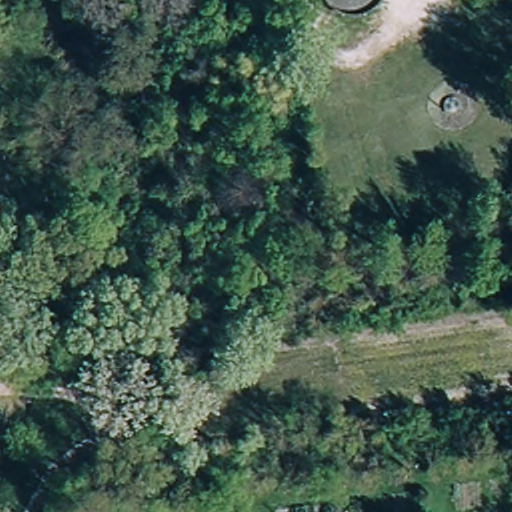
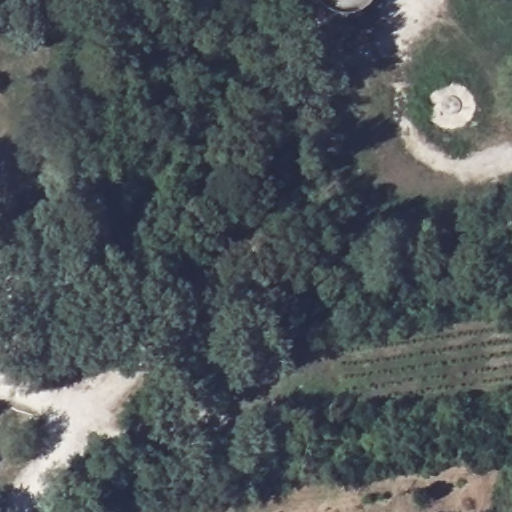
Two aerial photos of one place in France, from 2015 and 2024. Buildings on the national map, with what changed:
unchanged [(96,0),(115,0),(115,14),(96,14),(96,0)]
unchanged [(452,96),(454,97),(455,97),(456,97),(457,98),(458,99),(459,100),(460,102),(461,103),(461,104),(461,105),(461,106),(461,107),(461,109),(461,110),(460,111),(459,112),(459,113),(458,114),(457,114),(456,115),(455,115),(453,116),(451,116),(450,116),(449,115),(448,115),(447,114),(446,113),(445,113),(444,112),(443,111),(443,110),(442,108),(442,107),(442,106),(442,105),(442,104),(443,102),(443,101),(444,100),(445,99),(446,99),(447,98),(448,97),(449,97),(450,97),(451,96),(452,96)]
unchanged [(228,359),(230,377),(207,380),(205,362),(228,359)]
unchanged [(54,504),(67,512),(49,512),(54,504)]

